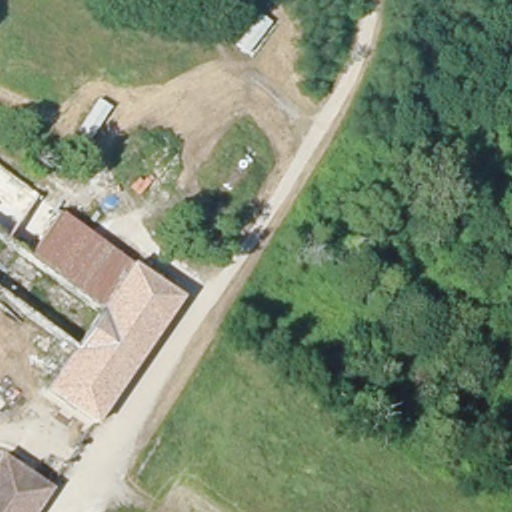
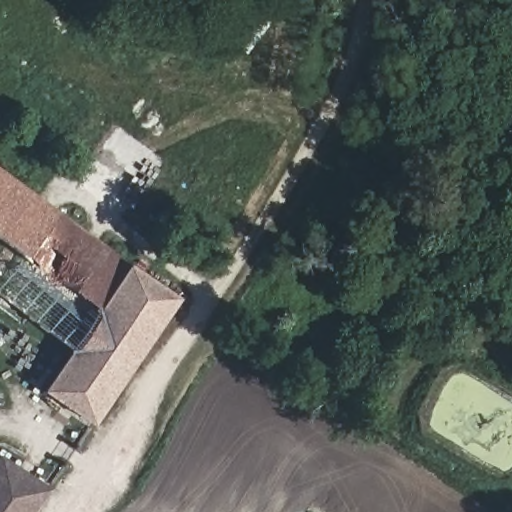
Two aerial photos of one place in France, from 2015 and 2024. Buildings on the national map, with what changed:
new [(29,256),(0,235),(0,167),(61,212),(29,256)]
unchanged [(61,212),(132,270),(103,310),(29,256),(61,212)]
unchanged [(135,266),(182,298),(93,426),(44,391),(75,348),(103,310),(132,270),(135,266)]
unchanged [(2,454),(52,490),(37,512),(0,512),(0,457),(2,454)]

